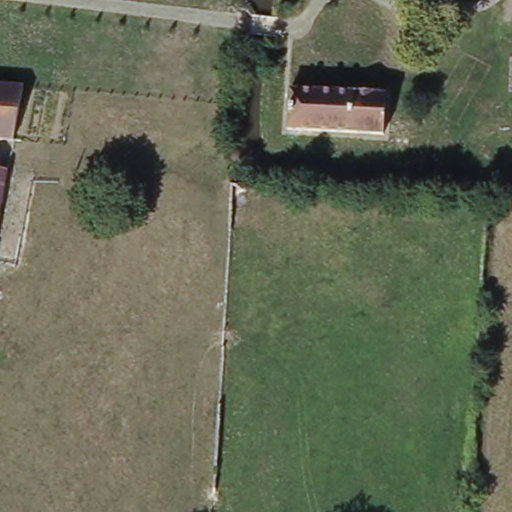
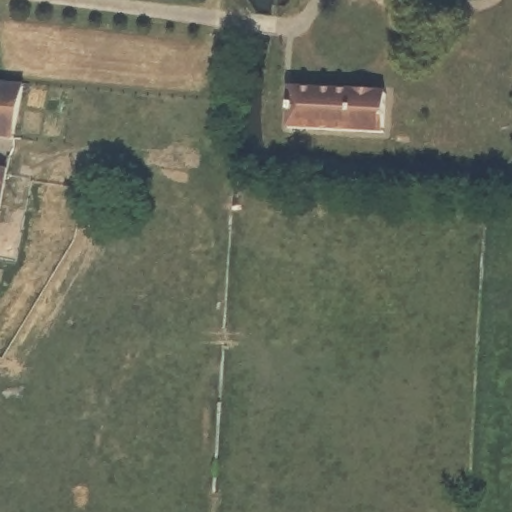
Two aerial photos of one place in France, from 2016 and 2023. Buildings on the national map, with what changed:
unchanged [(0,86),(30,87),(20,139),(0,138),(0,86)]
unchanged [(295,89),(388,93),(386,134),(292,129),(295,89)]
unchanged [(11,162),(21,165),(16,189),(28,190),(15,258),(9,258),(6,268),(0,267),(0,172),(10,173),(11,162)]

